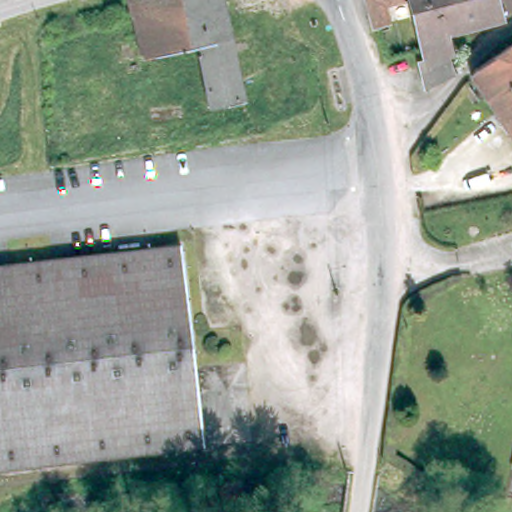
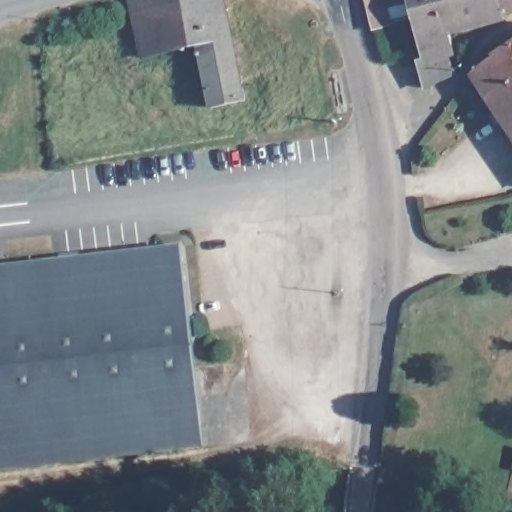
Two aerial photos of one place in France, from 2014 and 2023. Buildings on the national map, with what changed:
unchanged [(207,95),(197,46),(144,59),(122,64),(119,45),(124,45),(119,23),(135,20),(130,0),(225,0),(245,100),(210,109),(207,95)]
unchanged [(388,4),(391,23),(374,25),(368,0),(414,0),(388,4)]
unchanged [(457,56),(452,57),(456,74),(427,85),(421,61),(428,59),(414,0),(501,0),(506,17),(507,21),(452,34),(457,56)]
unchanged [(506,17),(501,0),(512,0),(512,14),(506,17)]
unchanged [(512,51),(512,142),(471,81),(512,51)]
unchanged [(61,263),(187,252),(206,453),(69,466),(61,263)]
unchanged [(0,472),(0,269),(61,263),(69,466),(0,472)]

